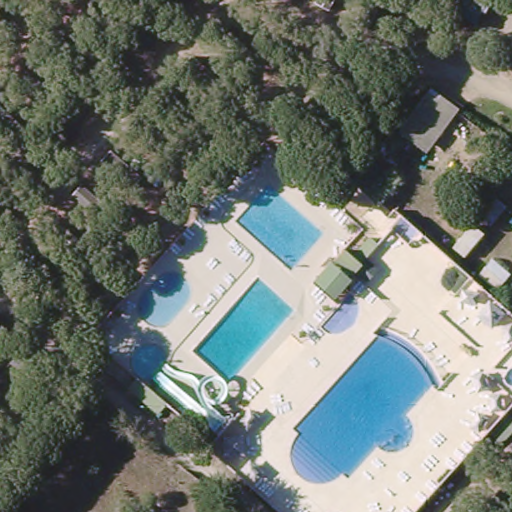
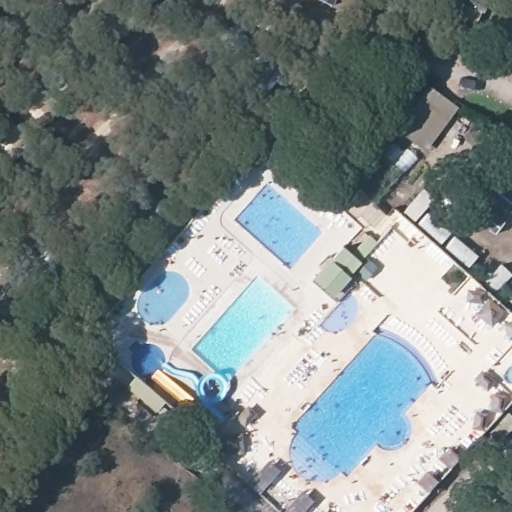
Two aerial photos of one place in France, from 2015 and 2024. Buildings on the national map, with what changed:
unchanged [(327,149),(290,111),(318,83),(356,120),(363,128),(334,155),(327,149)]
unchanged [(420,144),(399,128),(429,87),(451,103),(420,144)]
unchanged [(356,282),(336,304),(312,282),(343,248),(360,263),(349,275),(356,282)]

